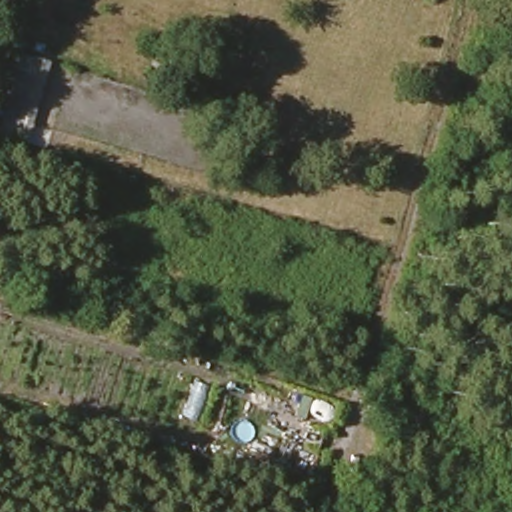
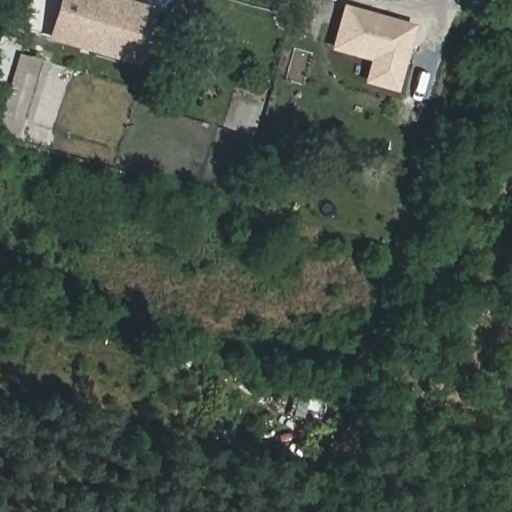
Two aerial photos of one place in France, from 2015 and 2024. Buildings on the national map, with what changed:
new [(139,65),(50,40),(61,0),(133,0),(156,6),(139,65)]
new [(399,92),(365,82),(370,60),(332,50),(345,4),(417,24),(399,92)]
new [(28,134),(0,126),(0,124),(22,52),(50,60),(28,134)]
unchanged [(467,55),(488,62),(482,82),(461,76),(467,55)]

